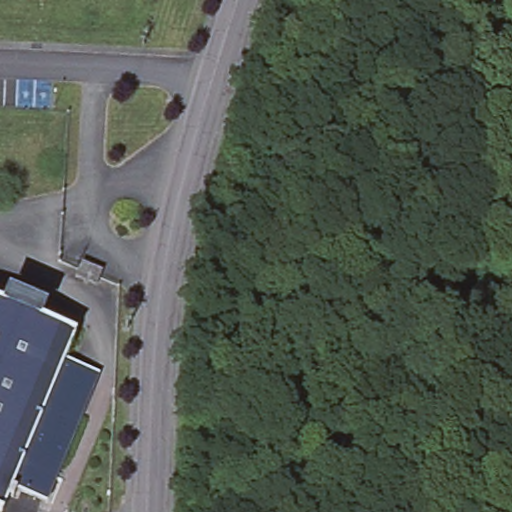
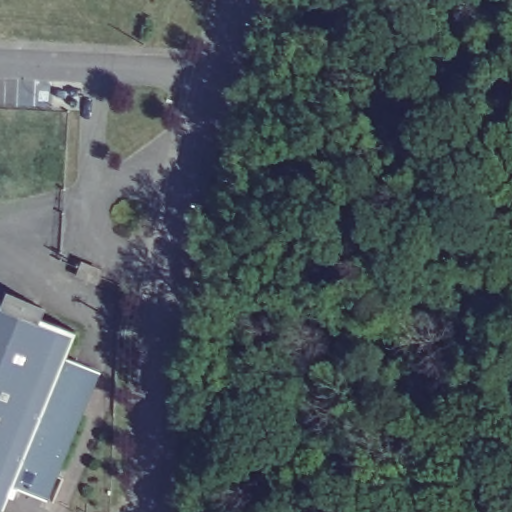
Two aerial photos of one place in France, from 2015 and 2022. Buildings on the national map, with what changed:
unchanged [(96,371),(42,498),(9,484),(0,504),(0,300),(3,302),(7,293),(40,306),(36,315),(71,331),(61,357),(96,371)]

